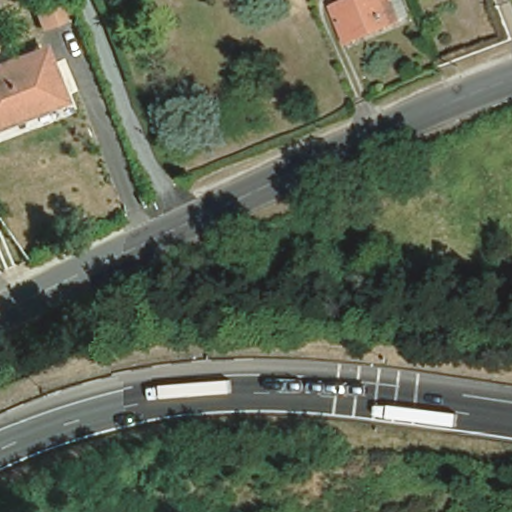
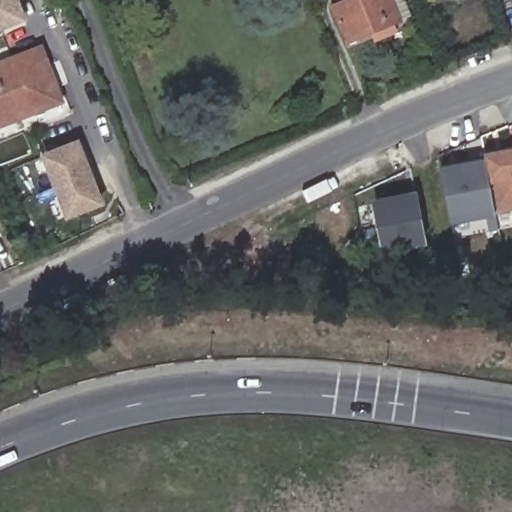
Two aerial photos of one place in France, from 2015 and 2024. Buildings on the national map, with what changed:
new [(20,0),(29,22),(0,34),(0,0),(20,0)]
new [(39,22),(30,0),(57,0),(62,12),(39,22)]
unchanged [(354,0),(405,0),(411,15),(399,20),(347,42),(334,9),(354,0)]
unchanged [(60,105),(0,127),(0,65),(39,51),(60,105)]
new [(67,221),(41,156),(80,140),(105,206),(67,221)]
new [(485,160),(483,155),(512,149),(512,212),(496,215),(485,160)]
new [(453,226),(441,168),(485,160),(496,215),(497,217),(453,226)]
new [(372,201),(417,192),(423,220),(428,246),(408,250),(381,247),(377,228),(372,201)]

